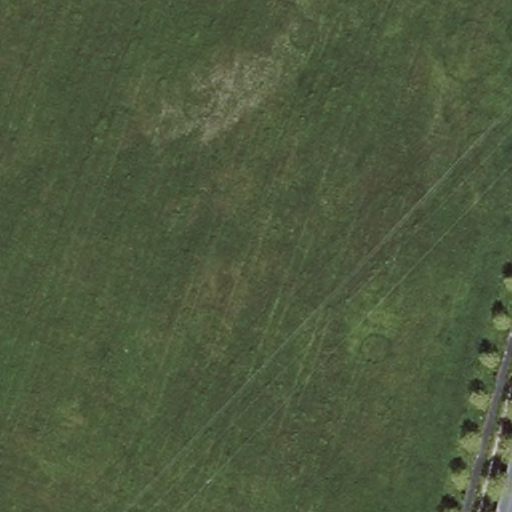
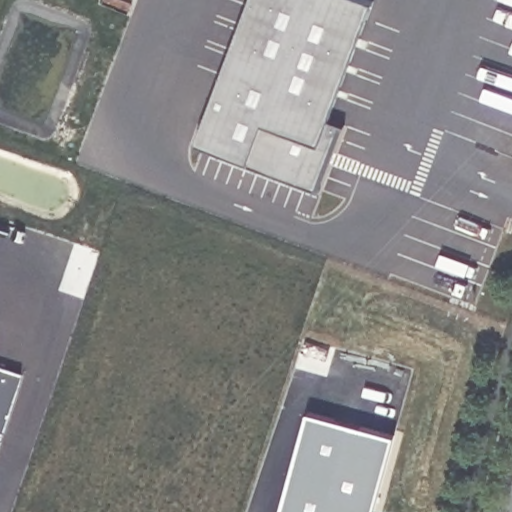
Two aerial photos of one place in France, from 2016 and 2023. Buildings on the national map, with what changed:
new [(346,126),(323,191),(251,162),(199,142),(252,0),(374,0),(375,0),(330,121),(346,126)]
new [(22,372),(2,433),(0,432),(0,366),(22,372)]
new [(308,412),(395,436),(374,512),(280,512),(308,412)]

